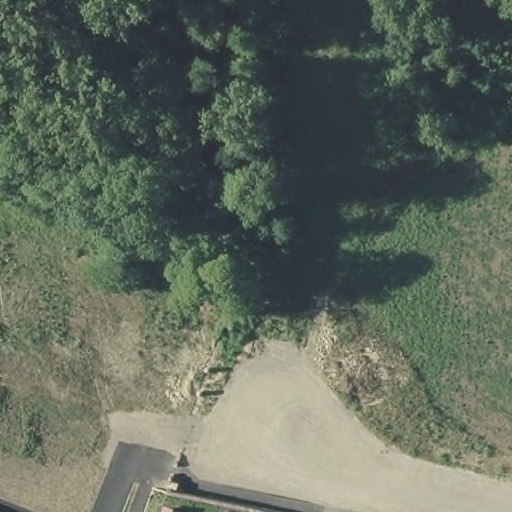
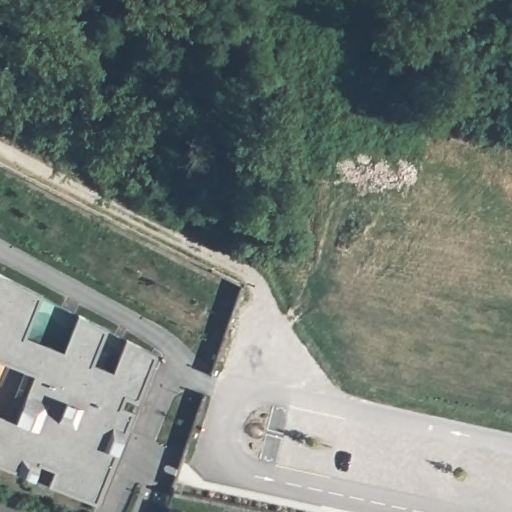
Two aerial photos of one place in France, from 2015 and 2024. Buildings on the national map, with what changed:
new [(50,486),(56,471),(41,466),(39,471),(35,481),(25,476),(16,473),(0,467),(0,416),(16,422),(22,408),(29,395),(36,377),(0,362),(0,274),(43,297),(27,338),(66,353),(79,315),(108,331),(94,365),(115,373),(127,340),(158,356),(139,404),(126,399),(122,408),(135,413),(127,433),(124,441),(118,456),(98,506),(50,486)]

